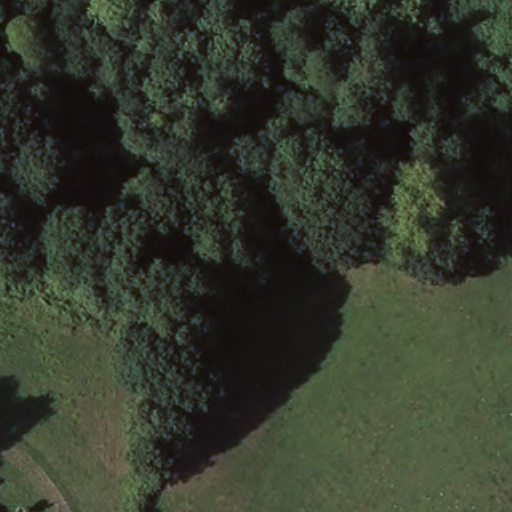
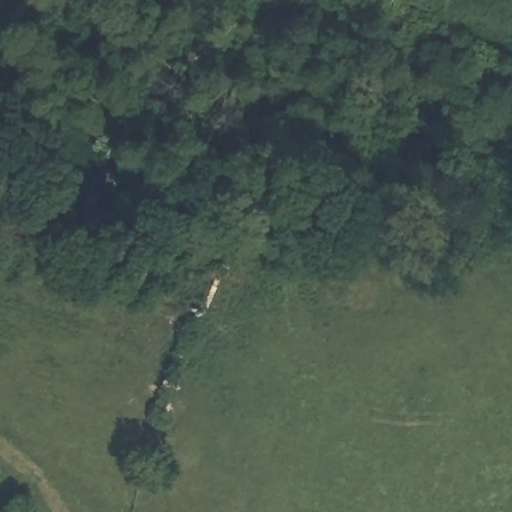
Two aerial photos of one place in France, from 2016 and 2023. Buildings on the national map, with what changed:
[]

